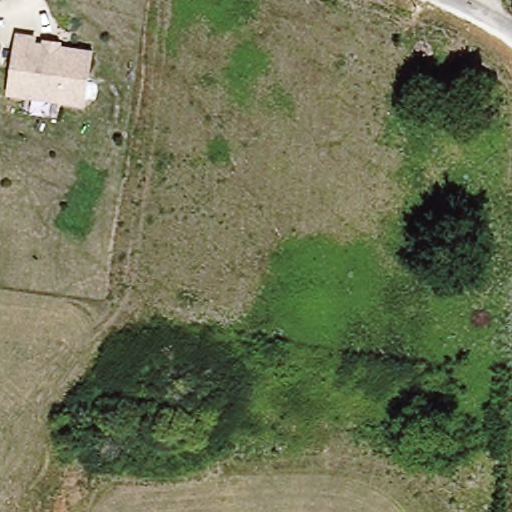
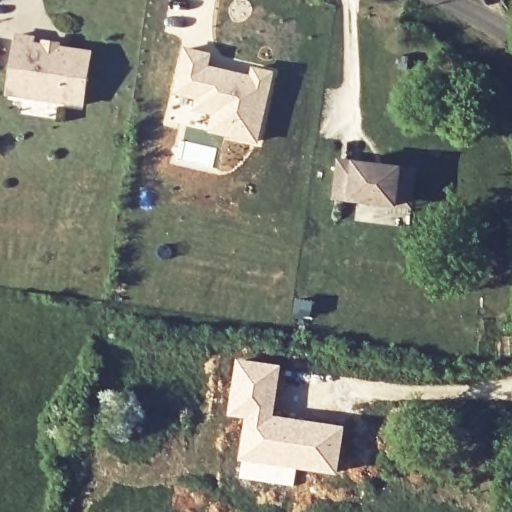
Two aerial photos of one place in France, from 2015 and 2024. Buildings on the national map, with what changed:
unchanged [(38,41),(37,46),(94,57),(85,110),(10,96),(21,38),(38,41)]
new [(183,47),(213,52),(210,64),(249,73),(252,65),(275,71),(259,145),(207,131),(212,114),(193,109),(195,98),(191,97),(194,83),(190,83),(189,55),(180,55),(183,47)]
new [(401,203),(338,196),(342,158),(419,166),(418,186),(416,204),(401,203)]
new [(235,357),(282,364),(275,413),(347,425),(339,475),(297,469),(294,487),(237,478),(244,418),(226,416),(235,357)]

